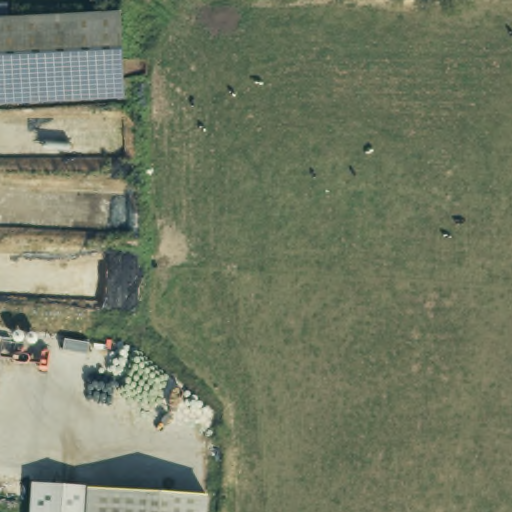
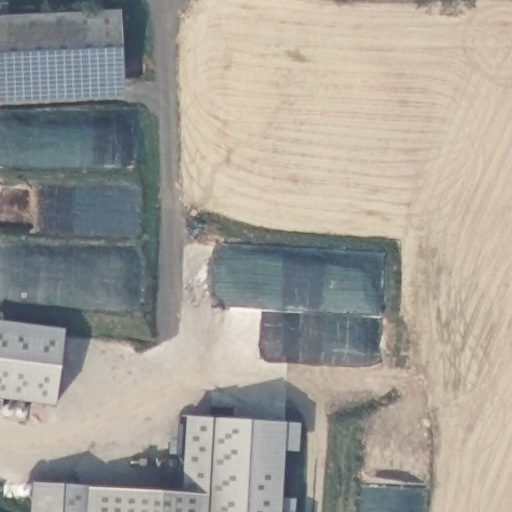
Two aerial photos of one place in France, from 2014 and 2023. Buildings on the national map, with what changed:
unchanged [(3,19),(123,15),(126,82),(7,87),(3,19)]
unchanged [(126,82),(127,97),(6,101),(7,87),(126,82)]
new [(0,320),(65,329),(54,405),(0,399),(0,320)]
new [(185,417),(287,423),(299,423),(297,452),(284,451),(280,512),(207,512),(207,496),(181,493),(185,417)]
unchanged [(207,496),(207,512),(29,512),(31,482),(207,496)]

